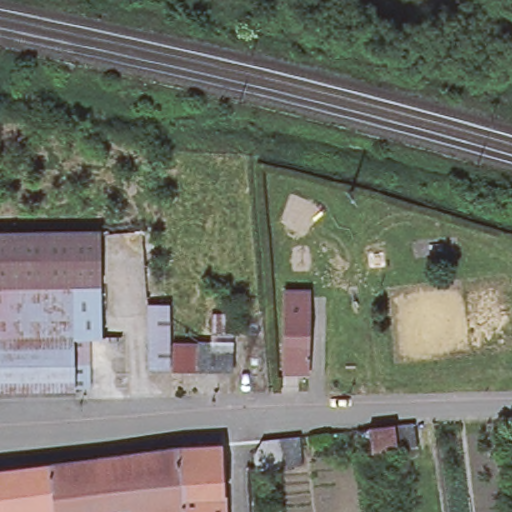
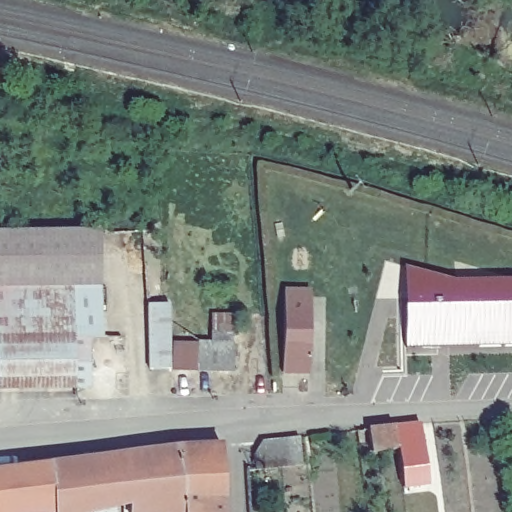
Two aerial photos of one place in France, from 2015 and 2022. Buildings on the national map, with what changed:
unchanged [(102,290),(72,290),(0,291),(0,236),(101,235),(102,290)]
new [(406,264),(456,277),(512,278),(512,346),(407,348),(406,264)]
unchanged [(0,291),(72,290),(102,290),(102,340),(90,340),(90,367),(90,390),(73,390),(0,392),(0,291)]
unchanged [(277,375),(278,347),(280,293),(307,294),(305,348),(305,375),(277,375)]
unchanged [(167,371),(146,372),(145,306),(166,306),(167,371)]
unchanged [(170,371),(170,345),(229,343),(230,370),(170,371)]
unchanged [(397,453),(395,442),(370,445),(370,443),(367,420),(391,418),(409,416),(422,415),(425,436),(427,450),(428,467),(398,471),(397,453)]
unchanged [(300,439),(302,463),(303,466),(282,470),(257,472),(257,470),(255,457),(263,443),(280,441),(300,439)]
unchanged [(225,490),(202,491),(200,444),(222,442),(225,490)]
unchanged [(131,512),(131,500),(125,451),(178,445),(200,444),(202,491),(225,490),(225,512),(173,512),(173,511),(152,512),(131,512)]
unchanged [(104,481),(101,454),(125,451),(131,500),(107,506),(104,481)]
unchanged [(104,481),(107,506),(82,512),(77,457),(101,454),(104,481)]
unchanged [(52,460),(77,457),(82,512),(56,512),(56,510),(57,510),(52,460)]
unchanged [(56,510),(39,512),(9,512),(1,466),(52,460),(57,510),(56,510)]
unchanged [(0,512),(0,467),(1,466),(9,512),(0,512)]

